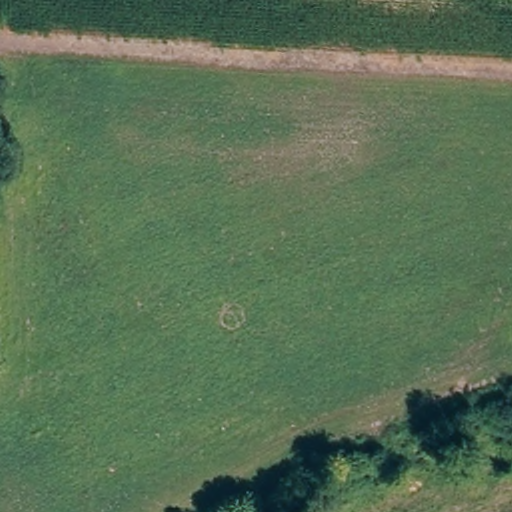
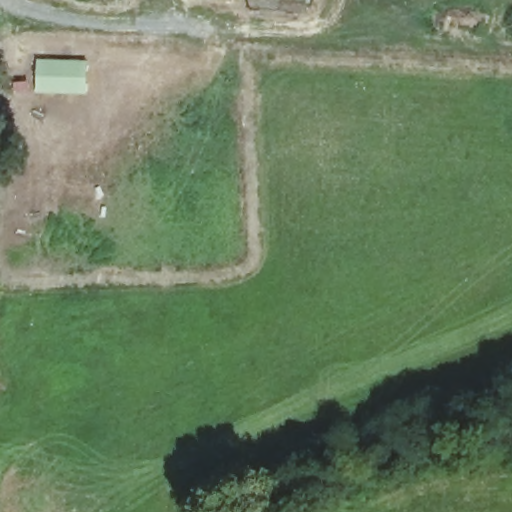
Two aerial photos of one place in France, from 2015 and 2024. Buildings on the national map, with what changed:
new [(35,58),(87,59),(86,93),(35,91),(35,58)]

